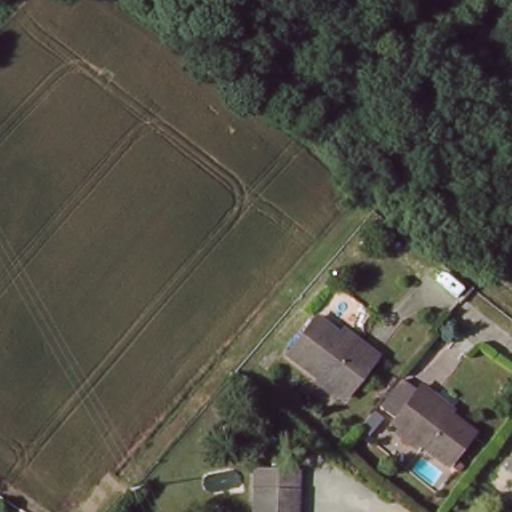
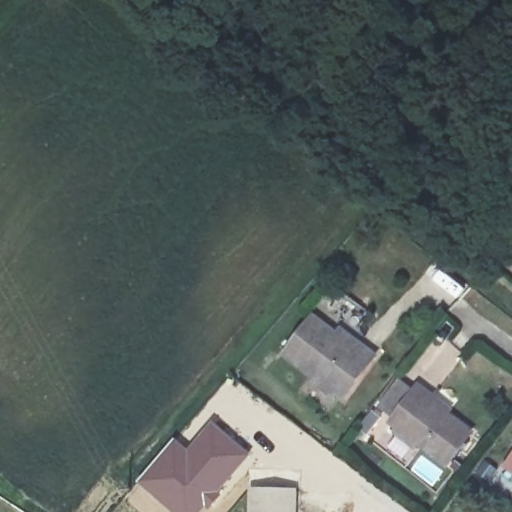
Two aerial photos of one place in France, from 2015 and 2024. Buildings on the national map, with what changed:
unchanged [(338,397),(281,352),(308,316),(332,335),(336,329),(352,340),(370,355),(338,397)]
unchanged [(447,465),(390,421),(420,383),(435,395),(452,407),(447,413),(472,432),(447,465)]
new [(176,437),(187,446),(211,418),(253,455),(228,484),(221,496),(205,512),(171,512),(136,482),(176,437)]
unchanged [(510,466),(512,464),(512,468),(510,466)]
unchanged [(252,493),(252,472),(295,473),(295,493),(295,512),(252,512),(252,493)]

